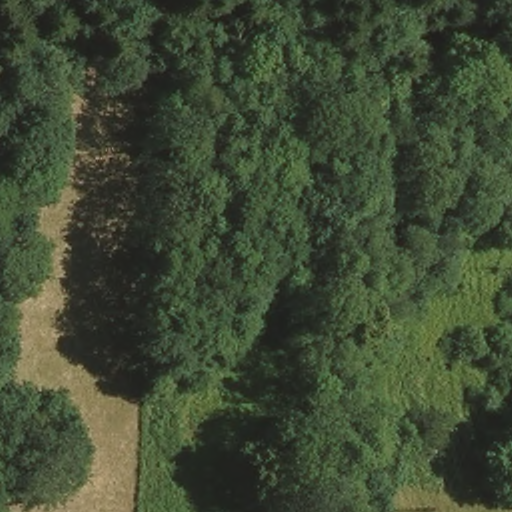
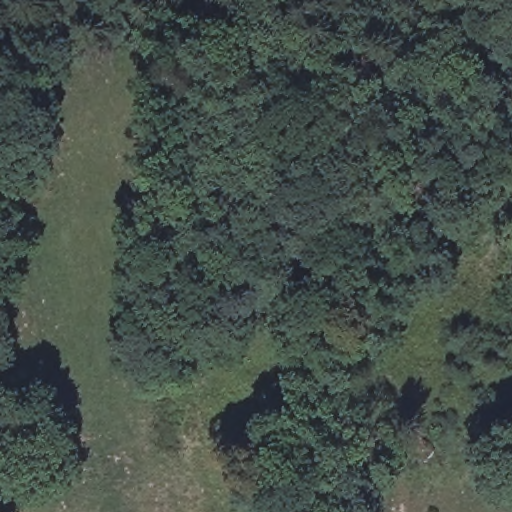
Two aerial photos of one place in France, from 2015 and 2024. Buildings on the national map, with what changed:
[]

